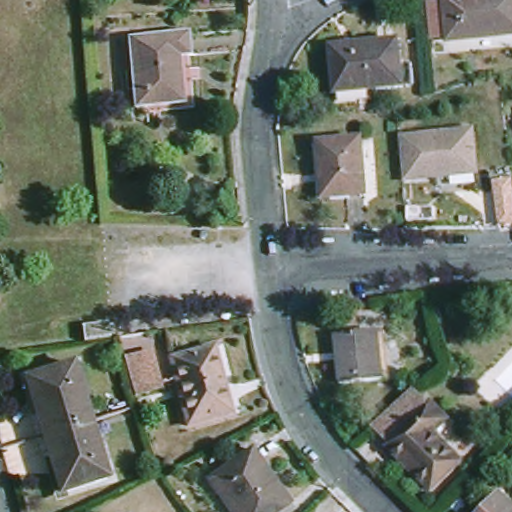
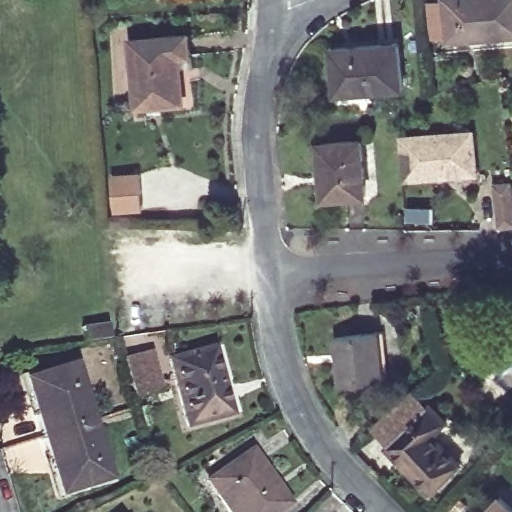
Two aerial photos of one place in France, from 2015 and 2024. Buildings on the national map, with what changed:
unchanged [(512,0),(512,41),(447,47),(443,5),(488,0),(512,0)]
unchanged [(185,36),(186,56),(176,58),(180,106),(134,109),(129,40),(185,36)]
unchanged [(397,47),(401,93),(335,98),(331,51),(397,47)]
unchanged [(406,138),(480,131),(483,174),(410,181),(406,138)]
unchanged [(360,143),(362,199),(320,201),(318,146),(360,143)]
new [(142,174),(146,209),(117,211),(115,176),(142,174)]
unchanged [(119,339),(91,342),(90,330),(118,324),(119,339)]
unchanged [(375,336),(379,383),(339,387),(333,341),(375,336)]
unchanged [(225,417),(184,427),(170,361),(216,351),(224,388),(230,416),(225,417)]
unchanged [(154,356),(165,390),(137,399),(126,363),(154,356)]
unchanged [(24,385),(72,369),(91,428),(42,443),(24,385)]
unchanged [(429,411),(431,408),(448,425),(433,440),(462,469),(433,498),(388,452),(390,449),(372,431),(411,392),(429,411)]
unchanged [(42,443),(91,428),(107,485),(60,500),(42,443)]
unchanged [(250,452),(287,503),(274,512),(229,512),(207,482),(250,452)]
unchanged [(512,512),(491,512),(502,501),(512,512)]

